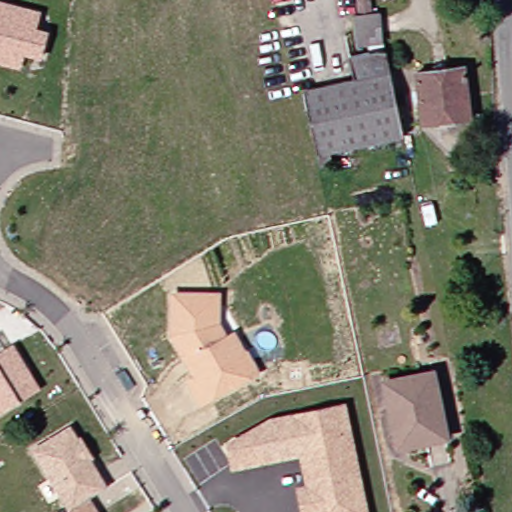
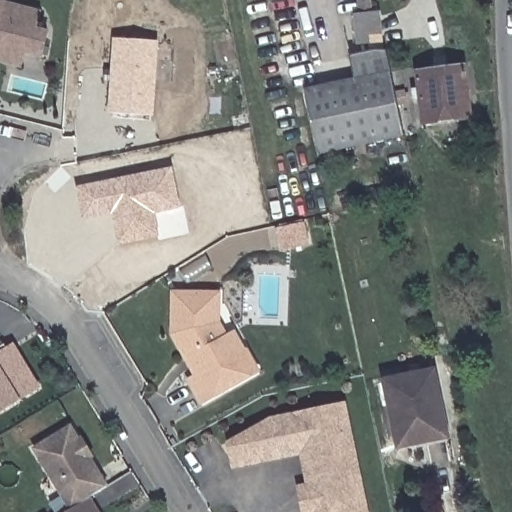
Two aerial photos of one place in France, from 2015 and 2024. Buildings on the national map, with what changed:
unchanged [(54,32),(47,60),(24,67),(0,61),(0,0),(9,0),(42,9),(38,27),(54,32)]
unchanged [(362,37),(357,12),(363,10),(363,0),(372,0),(373,8),(381,7),(387,38),(368,41),(364,42),(362,37)]
new [(113,37),(159,41),(154,116),(108,111),(113,37)]
unchanged [(334,151),(337,165),(324,167),(321,152),(324,151),(312,90),(363,81),(358,55),(382,52),(393,59),(410,138),(334,151)]
unchanged [(432,122),(426,70),(472,65),(479,116),(432,122)]
new [(77,186),(173,166),(181,207),(156,213),(160,237),(119,245),(112,214),(83,219),(77,186)]
unchanged [(202,401),(189,378),(193,375),(173,335),(173,291),(221,291),(221,307),(257,373),(202,401)]
unchanged [(0,416),(0,350),(16,339),(41,390),(0,416)]
unchanged [(426,437),(427,443),(405,448),(392,382),(439,372),(453,431),(426,437)]
unchanged [(295,487),(307,485),(298,455),(234,468),(228,441),(274,416),(348,400),(371,512),(300,512),(295,487)]
unchanged [(71,510),(35,445),(72,424),(107,485),(92,495),(102,512),(67,512),(71,510)]

